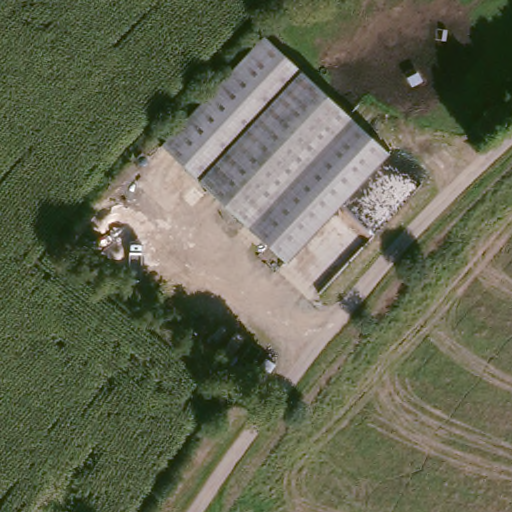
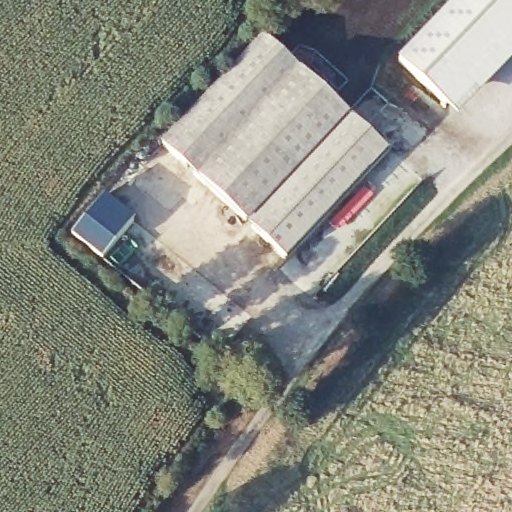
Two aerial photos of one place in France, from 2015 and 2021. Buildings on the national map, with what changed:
new [(453,0),(512,0),(512,18),(441,92),(401,55),(453,0)]
unchanged [(163,140),(268,31),(396,152),(300,263),(163,140)]
new [(102,260),(72,235),(103,195),(134,219),(102,260)]

